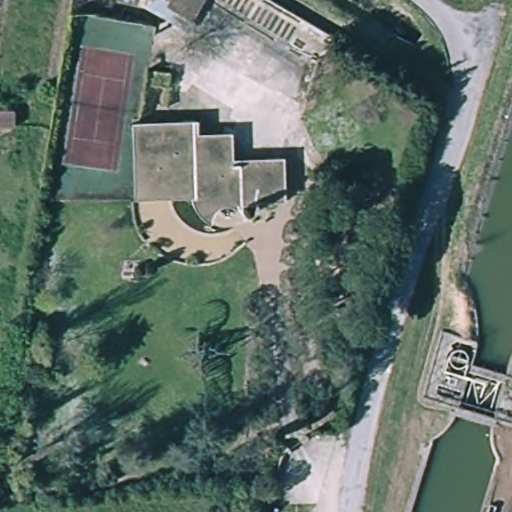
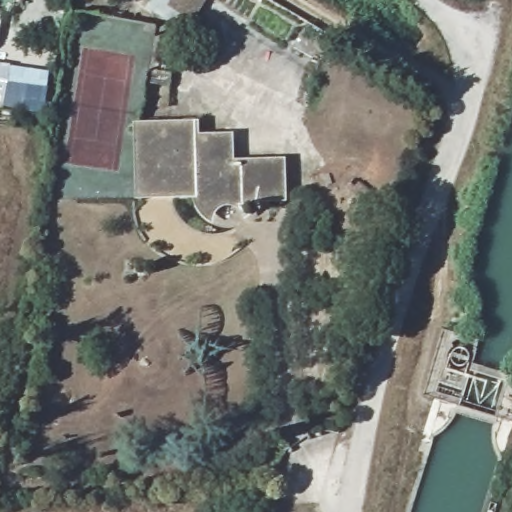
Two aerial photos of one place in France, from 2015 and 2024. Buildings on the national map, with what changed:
unchanged [(216,31),(203,24),(193,39),(153,15),(163,0),(232,0),(234,1),(216,31)]
new [(14,129),(0,126),(0,62),(47,70),(44,109),(17,111),(14,129)]
unchanged [(177,73),(176,81),(152,78),(155,69),(177,73)]
unchanged [(200,145),(235,145),(236,172),(286,171),(287,208),(238,210),(226,215),(218,225),(210,220),(203,212),(200,204),(199,200),(143,201),(141,135),(200,133),(200,145)]

